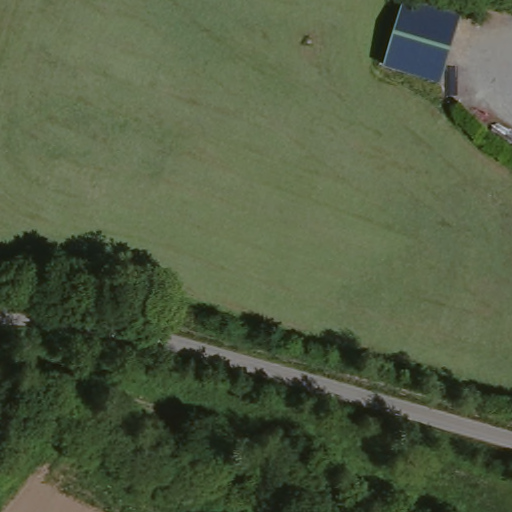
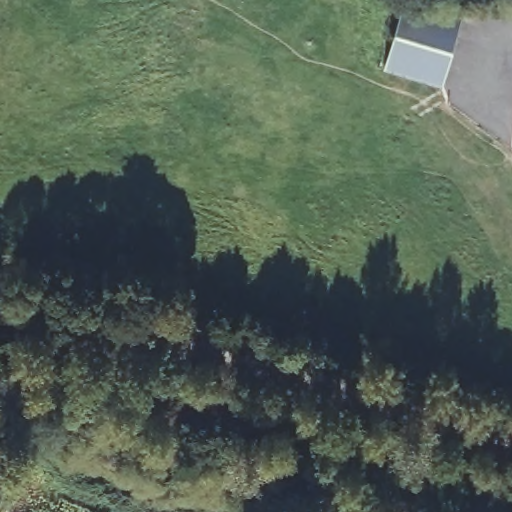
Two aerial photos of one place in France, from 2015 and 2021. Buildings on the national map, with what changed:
unchanged [(438,85),(386,68),(406,2),(461,23),(438,85)]

